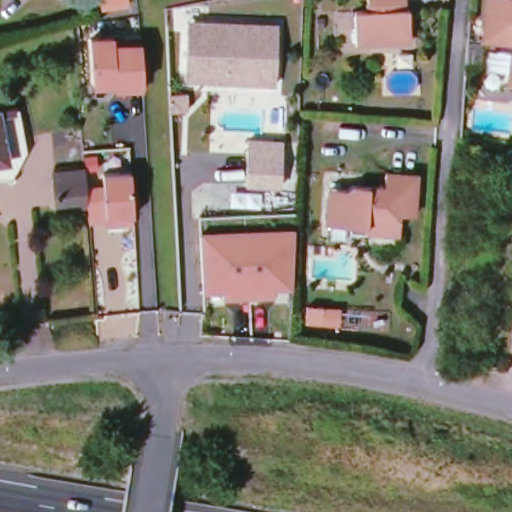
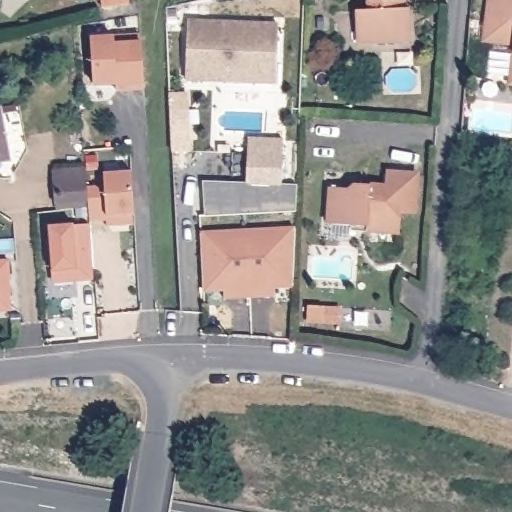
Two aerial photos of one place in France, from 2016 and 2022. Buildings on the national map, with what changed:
unchanged [(102,0),(128,0),(129,3),(104,8),(102,0)]
unchanged [(395,42),(357,43),(356,11),(369,10),(368,0),(400,0),(401,9),(410,8),(411,33),(411,41),(395,42)]
unchanged [(484,46),(489,0),(493,0),(512,2),(512,50),(484,46)]
unchanged [(186,30),(186,20),(207,20),(257,20),(277,20),(277,31),(277,79),(252,79),(209,78),(186,78),(186,30)]
unchanged [(116,90),(116,84),(94,85),(91,39),(140,36),(144,89),(116,90)]
unchanged [(512,72),(512,90),(510,90),(512,72)]
unchanged [(27,160),(0,165),(0,120),(20,116),(27,160)]
unchanged [(282,189),(247,188),(248,144),(282,145),(282,189)]
unchanged [(137,216),(107,219),(90,221),(89,208),(58,211),(55,173),(87,171),(90,188),(106,186),(106,174),(134,174),(137,216)]
unchanged [(347,190),(353,185),(386,187),(387,172),(417,174),(415,214),(401,214),(400,233),(367,231),(367,227),(328,224),(331,188),(347,190)]
new [(92,280),(52,283),(52,270),(49,226),(73,225),(89,226),(92,280)]
unchanged [(226,301),(225,292),(206,294),(203,234),(297,229),(295,290),(277,290),(277,298),(226,301)]
new [(0,311),(0,261),(9,260),(12,310),(0,311)]
unchanged [(309,325),(309,308),(342,309),(342,327),(309,325)]

